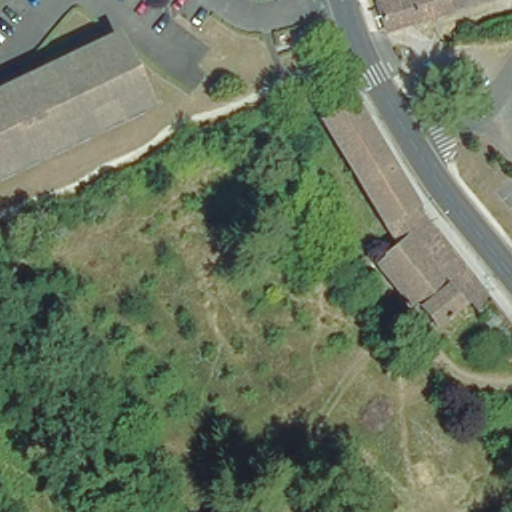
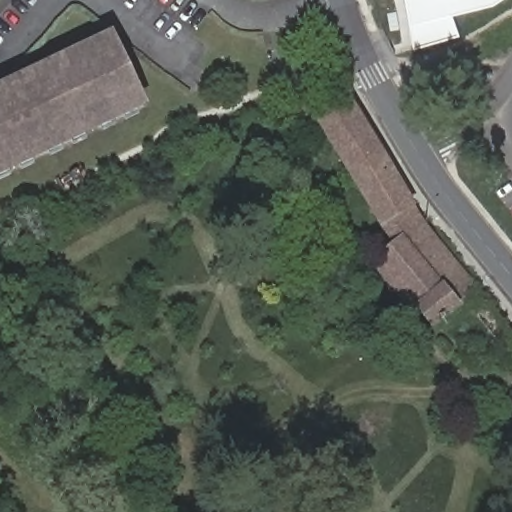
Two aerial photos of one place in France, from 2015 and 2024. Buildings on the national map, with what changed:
demolished [(384,32),(374,0),(446,0),(450,12),(384,32)]
new [(453,16),(460,36),(414,50),(406,0),(504,0),(494,7),(453,16)]
demolished [(446,0),(485,0),(450,12),(446,0)]
unchanged [(0,91),(111,37),(145,106),(0,175),(0,91)]
unchanged [(320,82),(314,71),(329,64),(335,75),(320,82)]
unchanged [(417,216),(425,227),(396,251),(380,230),(319,128),(353,107),(417,216)]
unchanged [(507,355),(476,316),(468,306),(433,332),(416,311),(408,317),(373,271),(380,265),(396,251),(425,227),(478,296),(487,307),(512,338),(512,351),(507,355)]

